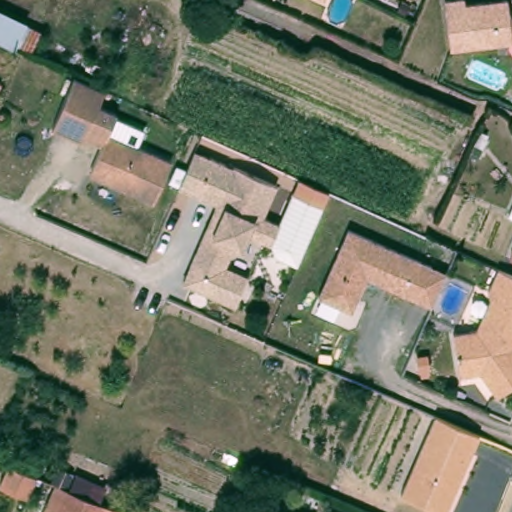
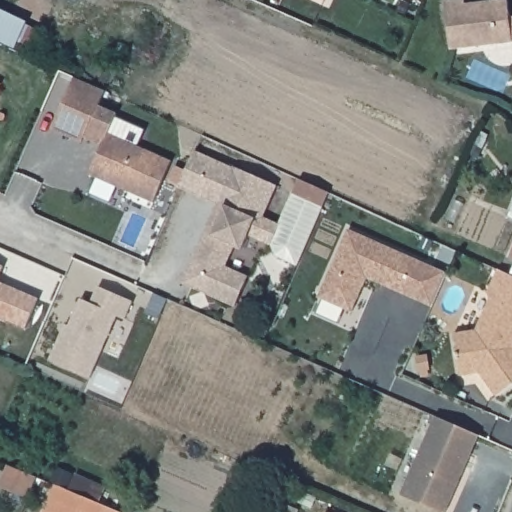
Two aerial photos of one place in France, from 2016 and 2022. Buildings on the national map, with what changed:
unchanged [(443,1),(447,0),(466,0),(466,4),(495,0),(507,0),(509,18),(512,18),(512,42),(510,42),(449,51),(443,1)]
unchanged [(38,31),(29,52),(14,46),(13,47),(0,40),(0,12),(24,23),(24,25),(38,31)]
unchanged [(90,76),(94,65),(104,69),(100,80),(90,76)]
unchanged [(112,113),(104,134),(166,160),(146,200),(86,174),(97,144),(80,136),(91,104),(112,113)]
unchanged [(192,149),(270,182),(255,212),(246,230),(236,251),(245,255),(225,302),(179,281),(200,234),(209,234),(220,207),(176,187),(192,149)]
unchanged [(255,212),(280,222),(296,189),(327,200),(302,267),(279,255),(273,240),(246,230),(255,212)]
unchanged [(415,255),(400,292),(368,277),(355,310),(321,295),(351,226),(415,255)]
unchanged [(508,254),(512,244),(512,255),(508,254)]
unchanged [(415,255),(447,269),(430,306),(400,292),(415,255)]
new [(0,274),(0,265),(4,267),(0,274)]
unchanged [(512,276),(512,378),(491,392),(476,370),(457,373),(451,329),(474,327),(488,296),(483,292),(493,268),(512,276)]
new [(25,329),(0,318),(0,282),(39,299),(25,329)]
new [(62,332),(66,333),(81,299),(91,303),(98,287),(132,302),(124,319),(134,323),(118,358),(101,351),(90,378),(50,361),(62,332)]
unchanged [(444,512),(439,512),(396,492),(431,415),(481,436),(444,512)]
unchanged [(27,499),(0,488),(0,481),(6,467),(35,478),(27,499)]
unchanged [(46,504),(54,486),(49,483),(55,467),(73,475),(66,491),(90,500),(104,506),(101,512),(54,512),(56,508),(46,504)]

